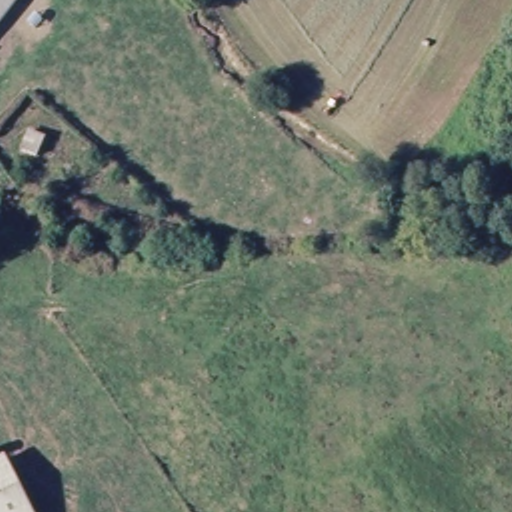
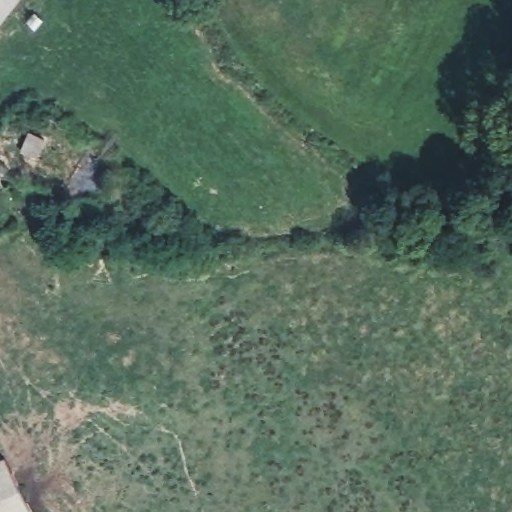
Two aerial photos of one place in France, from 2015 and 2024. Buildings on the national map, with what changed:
unchanged [(0,24),(0,0),(22,0),(0,24)]
unchanged [(2,458),(29,512),(0,512),(0,459),(2,458)]

